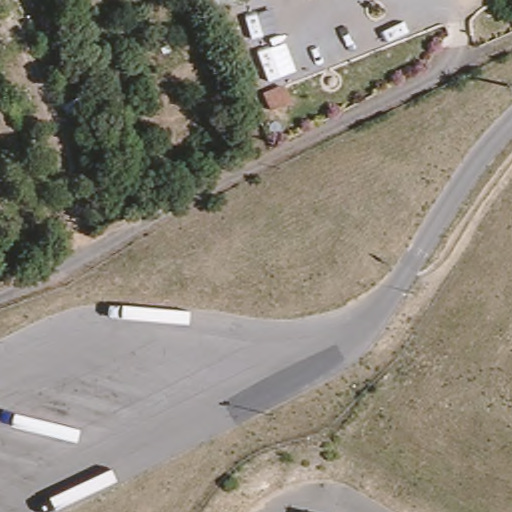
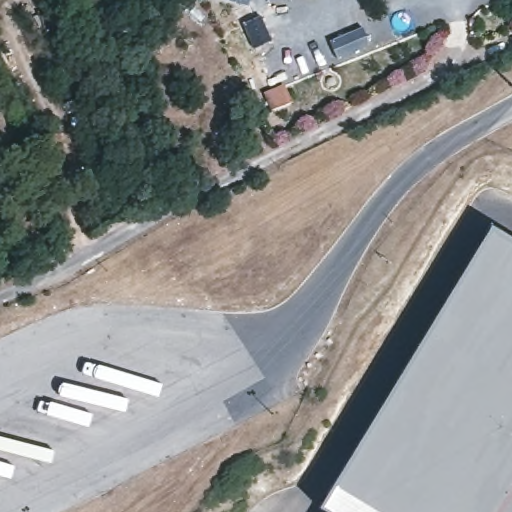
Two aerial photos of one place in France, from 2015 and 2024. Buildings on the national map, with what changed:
new [(483,221),(512,238),(512,512),(323,512),(313,504),(483,221)]

